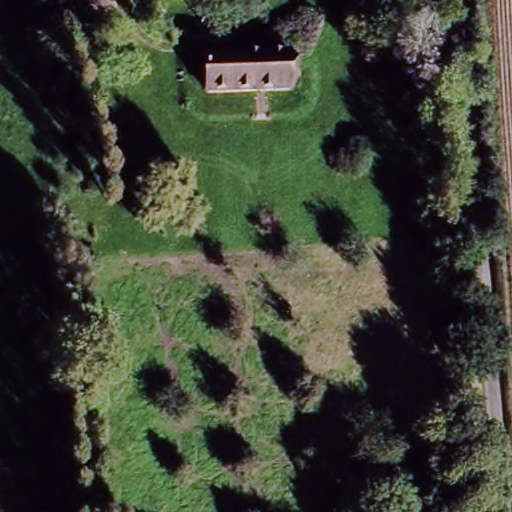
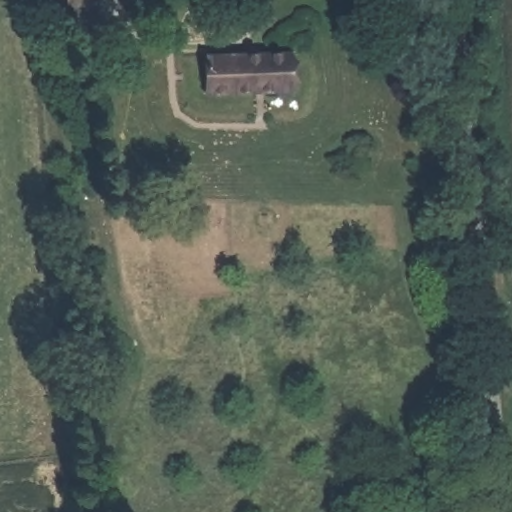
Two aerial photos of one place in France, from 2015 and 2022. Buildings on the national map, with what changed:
unchanged [(64,29),(64,0),(97,0),(97,27),(64,29)]
unchanged [(291,48),(292,89),(203,91),(203,49),(291,48)]

